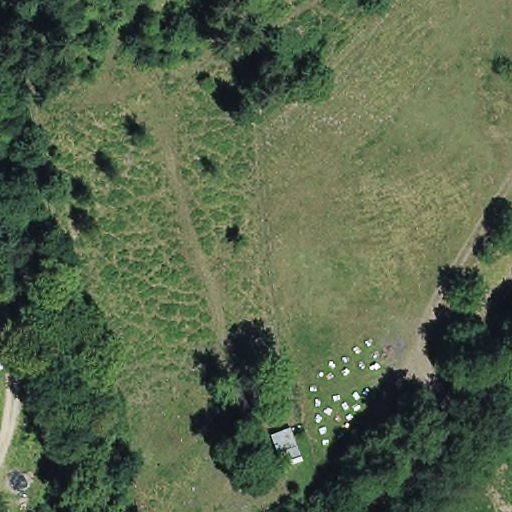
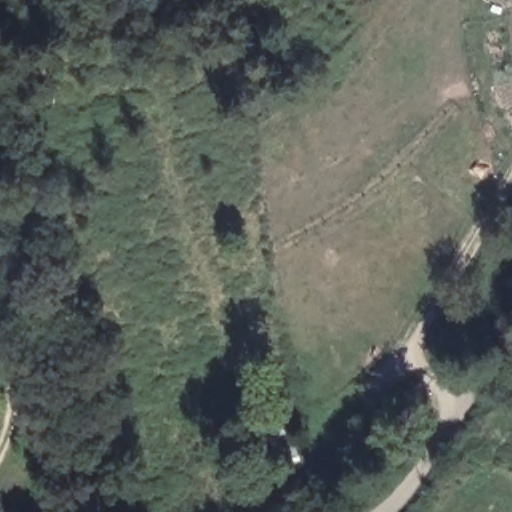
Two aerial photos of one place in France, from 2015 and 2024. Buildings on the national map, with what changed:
unchanged [(0,366),(0,351),(5,365),(0,366)]

